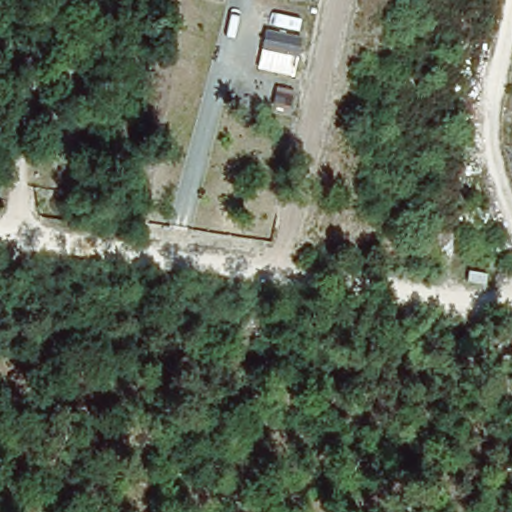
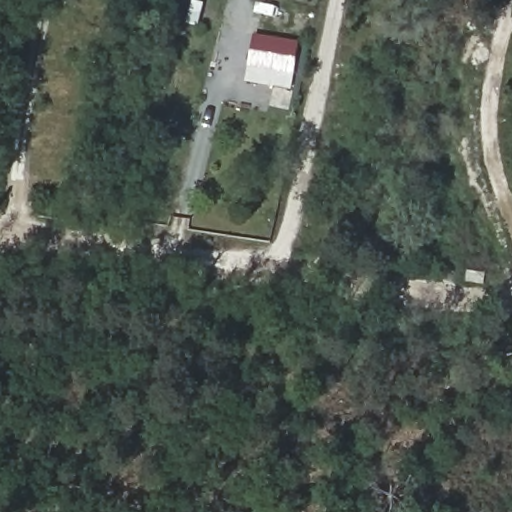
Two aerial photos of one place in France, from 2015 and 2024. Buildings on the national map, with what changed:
new [(245,81),(254,33),(299,41),(291,89),(245,81)]

